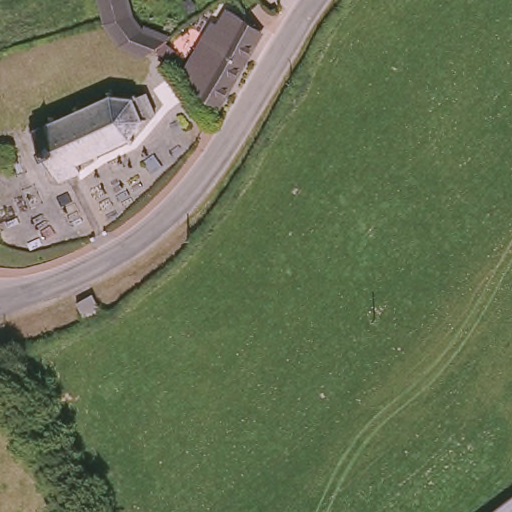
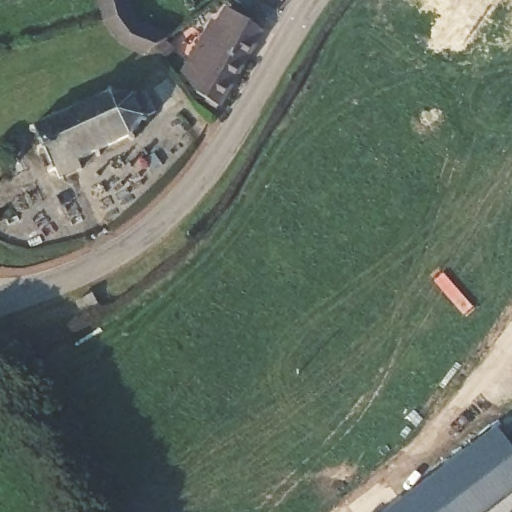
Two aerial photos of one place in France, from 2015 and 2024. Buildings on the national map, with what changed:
unchanged [(169,37),(144,58),(120,44),(103,22),(98,0),(131,0),(140,24),(169,37)]
unchanged [(207,99),(196,69),(222,15),(252,29),(207,99)]
unchanged [(275,40),(229,111),(207,99),(252,29),(275,40)]
unchanged [(55,113),(59,122),(112,95),(107,83),(123,75),(127,84),(144,77),(150,90),(146,92),(157,112),(162,110),(167,122),(152,129),(157,139),(157,140),(142,147),(137,137),(84,164),(85,167),(90,176),(72,185),(67,175),(55,181),(49,169),(58,164),(48,145),(38,150),(30,136),(40,131),(36,122),(55,113)]
new [(497,427),(512,447),(512,497),(492,512),(387,512),(497,427)]
unchanged [(512,497),(512,512),(492,512),(512,497)]

